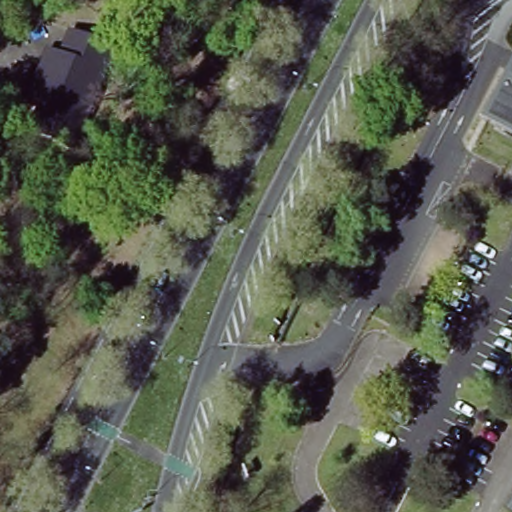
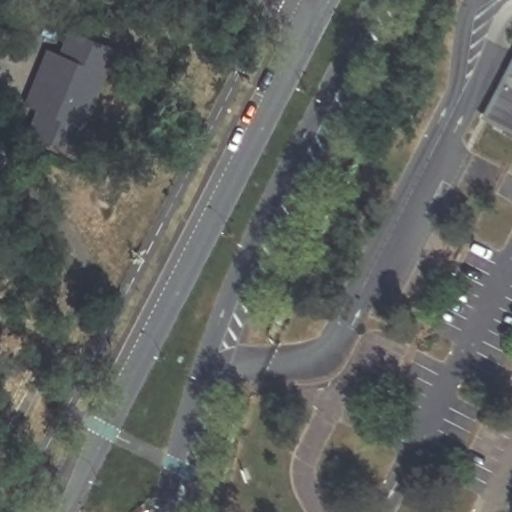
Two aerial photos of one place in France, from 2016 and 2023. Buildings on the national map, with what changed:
unchanged [(22,101),(50,47),(62,53),(72,32),(115,55),(64,152),(22,130),(34,107),(22,101)]
unchanged [(482,123),(512,66),(512,139),(482,123)]

